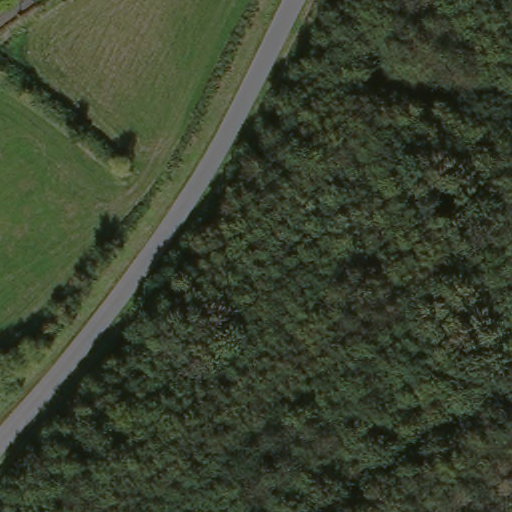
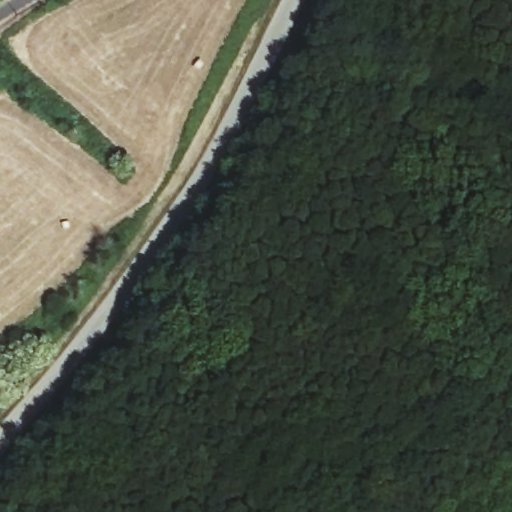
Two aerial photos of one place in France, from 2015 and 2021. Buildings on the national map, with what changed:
[]

